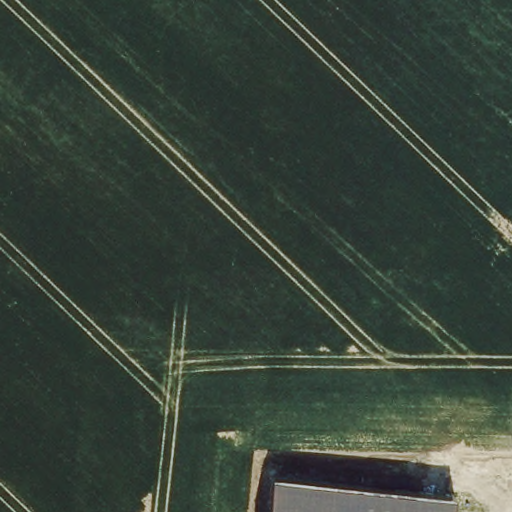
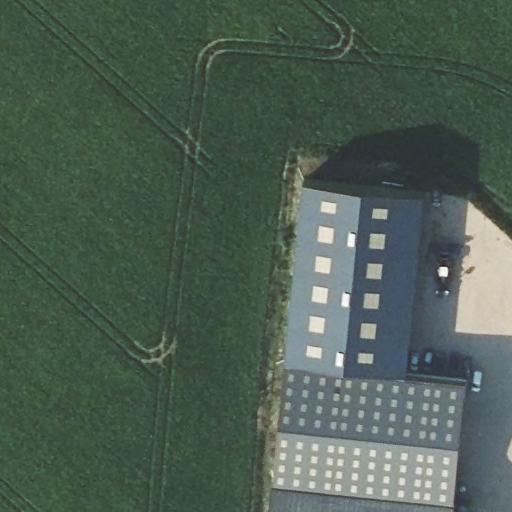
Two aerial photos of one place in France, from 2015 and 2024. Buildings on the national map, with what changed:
new [(304,180),(425,192),(407,372),(286,361),(304,180)]
new [(286,361),(407,372),(468,378),(456,498),(276,481),(286,361)]
unchanged [(456,498),(455,512),(272,512),(276,481),(456,498)]

